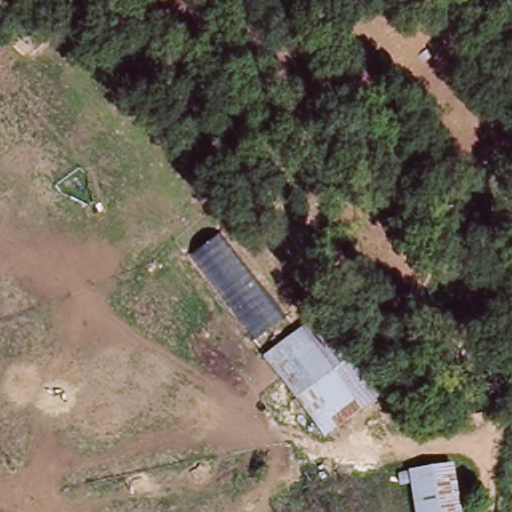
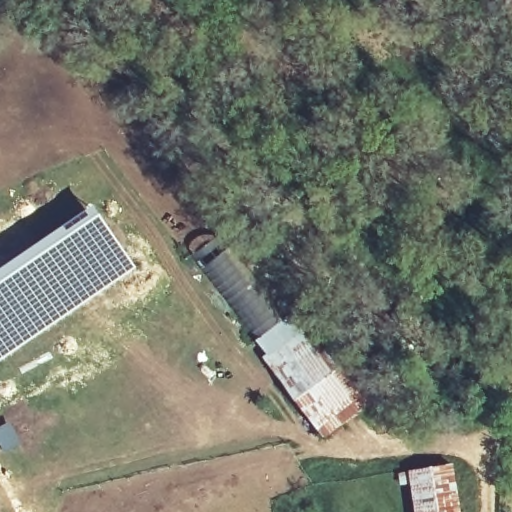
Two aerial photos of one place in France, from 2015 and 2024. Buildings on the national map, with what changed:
new [(139,269),(0,363),(0,267),(94,204),(139,269)]
unchanged [(284,318),(257,340),(191,256),(217,236),(284,318)]
demolished [(316,367),(296,335),(334,310),(387,391),(350,416),(316,367)]
unchanged [(316,367),(284,389),(262,359),(296,335),(316,367)]
unchanged [(284,389),(316,367),(350,416),(320,438),(284,389)]
new [(0,426),(10,421),(22,443),(5,453),(0,444),(0,426)]
unchanged [(452,468),(457,512),(415,512),(411,473),(452,468)]

